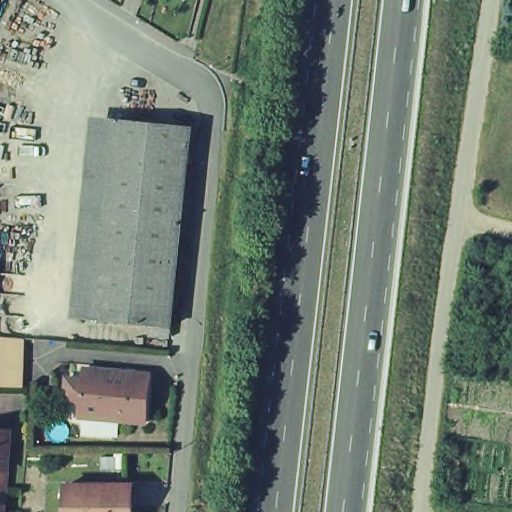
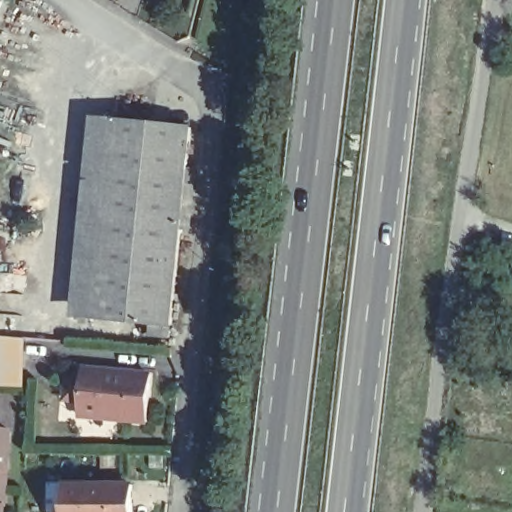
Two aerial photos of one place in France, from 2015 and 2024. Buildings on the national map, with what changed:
unchanged [(99,142),(101,116),(181,124),(178,149),(99,142)]
unchanged [(140,332),(141,321),(83,316),(83,310),(99,142),(178,149),(164,309),(162,324),(161,334),(140,332)]
unchanged [(16,335),(20,335),(23,335),(23,336),(23,383),(16,383),(0,383),(0,335),(16,335)]
unchanged [(153,368),(148,416),(80,409),(81,395),(66,393),(68,371),(83,372),(84,361),(153,368)]
unchanged [(9,512),(0,512),(0,432),(17,434),(9,512)]
unchanged [(140,479),(139,512),(73,512),(74,478),(140,479)]

